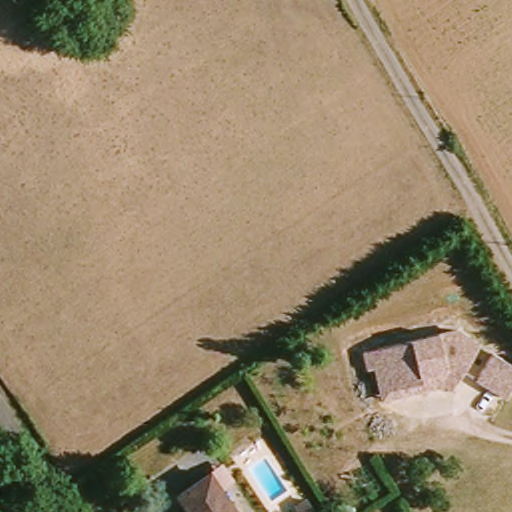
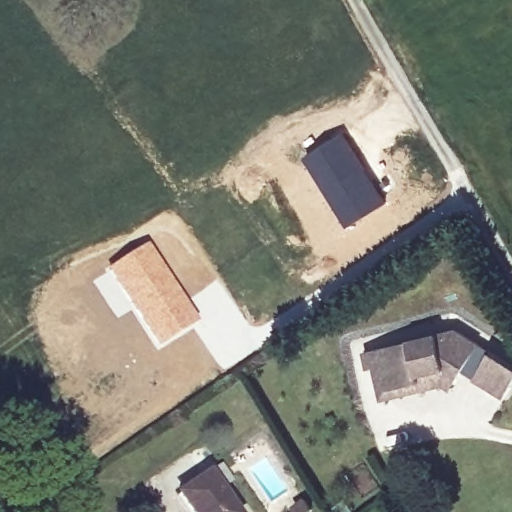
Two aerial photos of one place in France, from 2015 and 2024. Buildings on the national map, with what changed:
new [(342,131),(387,202),(351,227),(306,156),(342,131)]
new [(147,243),(198,322),(158,349),(105,270),(147,243)]
unchanged [(444,368),(419,376),(420,383),(385,391),(376,350),(455,332),(477,345),(457,378),(444,368)]
unchanged [(365,372),(361,354),(376,350),(385,391),(420,383),(419,376),(444,368),(457,378),(450,391),(440,385),(380,399),(373,369),(365,372)]
unchanged [(503,398),(473,379),(490,352),(512,365),(512,384),(503,398)]
unchanged [(177,497),(210,474),(237,512),(188,512),(177,497)]
unchanged [(308,511),(320,502),(328,512),(310,512),(308,511)]

